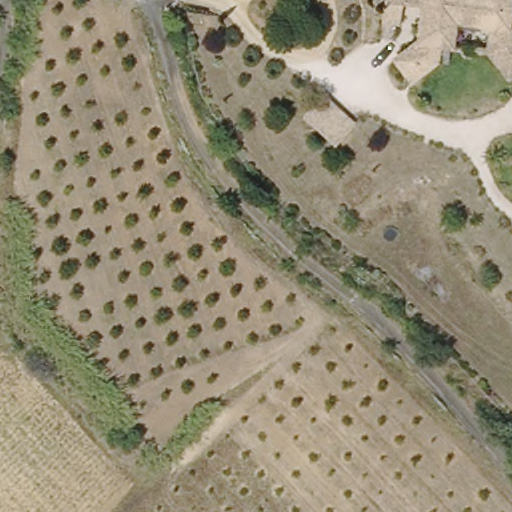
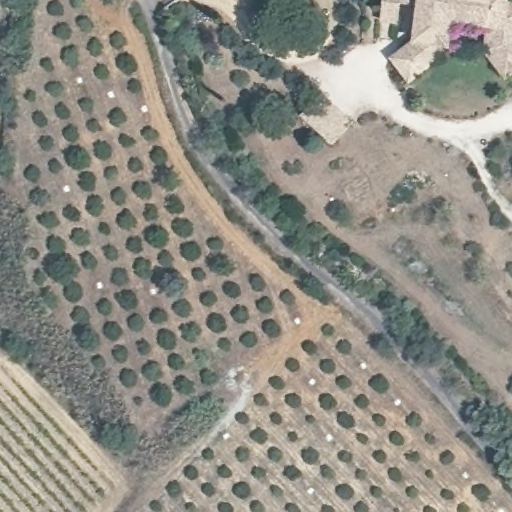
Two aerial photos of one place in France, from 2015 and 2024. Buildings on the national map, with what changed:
unchanged [(493,55),(492,32),(455,28),(452,49),(413,84),(396,57),(413,44),(410,24),(386,21),(388,0),(512,0),(512,4),(512,3),(512,81),(493,55)]
unchanged [(324,92),(357,124),(333,147),(299,115),(324,92)]

